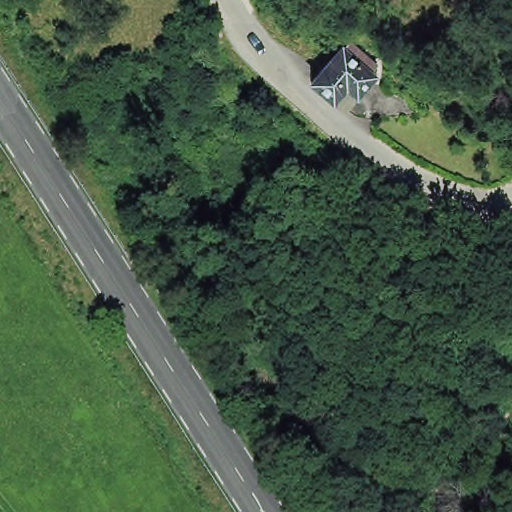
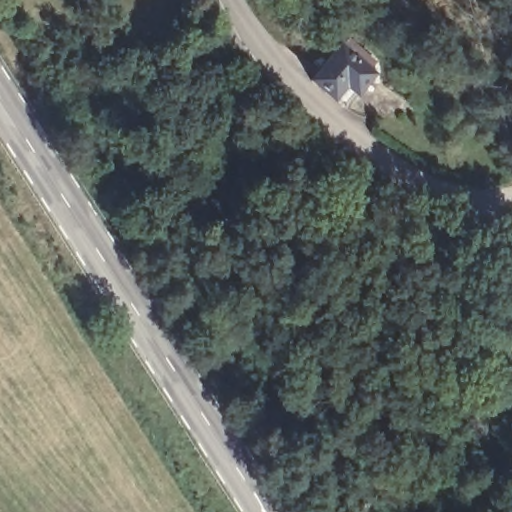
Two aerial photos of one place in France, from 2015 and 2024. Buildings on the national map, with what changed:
unchanged [(344,104),(312,76),(349,33),(374,57),(369,63),(374,68),(344,104)]

